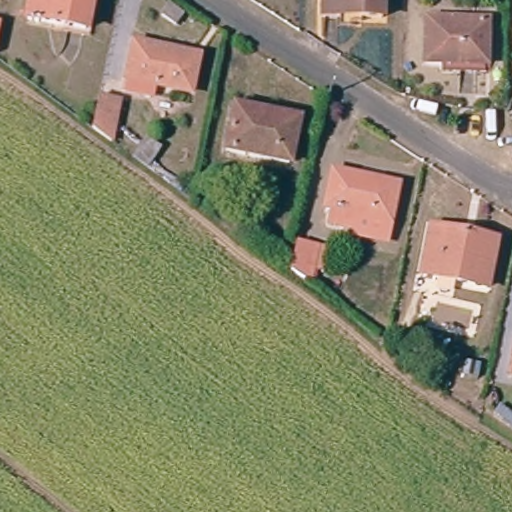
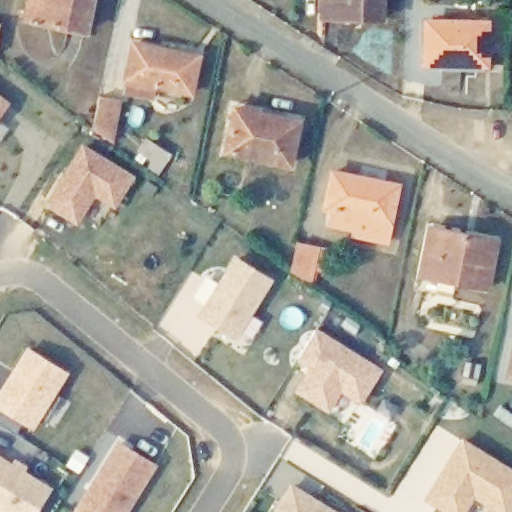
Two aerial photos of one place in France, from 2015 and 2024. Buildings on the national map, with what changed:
unchanged [(90,27),(34,16),(36,0),(94,0),(90,27)]
unchanged [(326,17),(326,0),(380,0),(380,19),(326,17)]
unchanged [(426,61),(426,21),(488,23),(488,62),(426,61)]
unchanged [(189,92),(127,79),(135,44),(195,58),(189,92)]
new [(0,116),(0,96),(9,103),(0,116)]
unchanged [(115,100),(111,129),(92,126),(99,97),(115,100)]
unchanged [(289,161),(227,149),(235,110),(295,122),(289,161)]
new [(135,176),(117,208),(94,196),(77,223),(45,205),(83,143),(135,176)]
unchanged [(396,187),(387,237),(356,232),(357,227),(330,220),(332,206),(326,205),(332,173),(396,187)]
unchanged [(488,284),(425,275),(431,227),(495,235),(488,284)]
unchanged [(317,247),(313,276),(292,273),(298,243),(317,247)]
new [(197,317),(205,305),(192,297),(206,276),(217,284),(234,255),(275,281),(237,342),(197,317)]
new [(342,394),(328,413),(293,392),(307,368),(295,361),(317,328),(382,370),(362,405),(342,394)]
new [(26,345),(69,374),(32,430),(0,409),(0,388),(26,345)]
new [(512,469),(512,509),(510,512),(495,512),(475,499),(467,512),(445,512),(425,499),(462,438),(512,469)]
new [(127,512),(73,512),(117,440),(157,464),(127,512)]
new [(12,462),(15,457),(30,467),(26,471),(52,488),(37,512),(0,512),(0,455),(12,462)]
new [(339,512),(271,512),(290,482),(339,512)]

